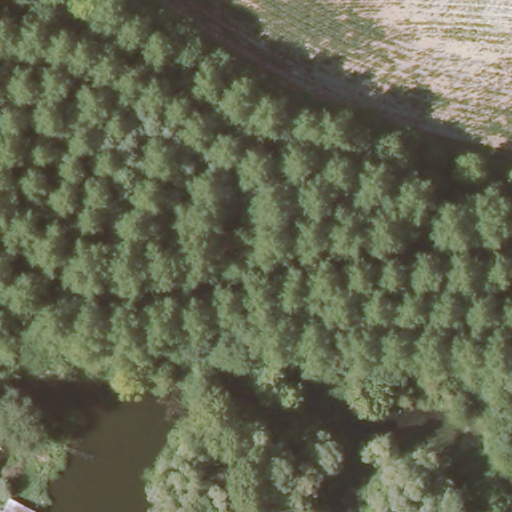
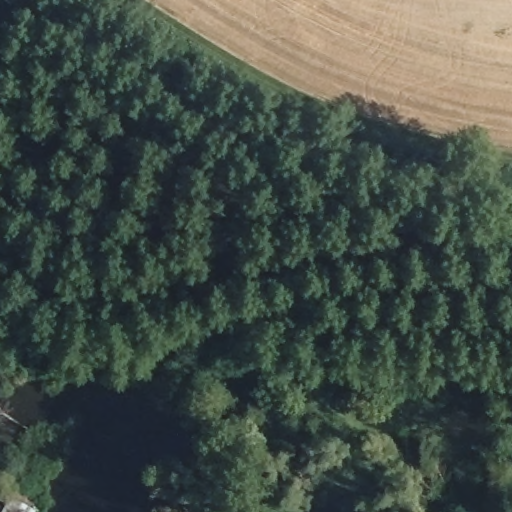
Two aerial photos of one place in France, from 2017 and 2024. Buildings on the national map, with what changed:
unchanged [(207,233),(240,228),(244,249),(210,253),(207,233)]

